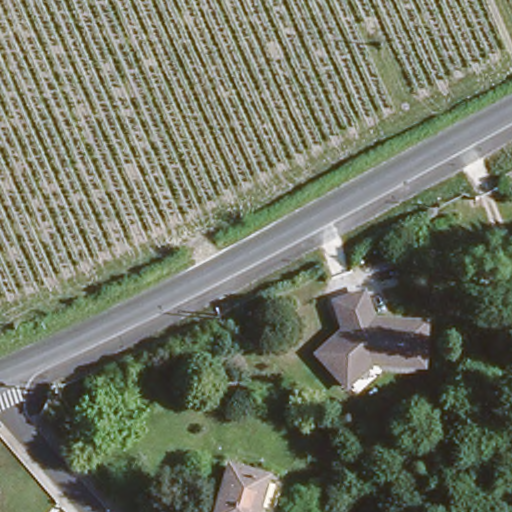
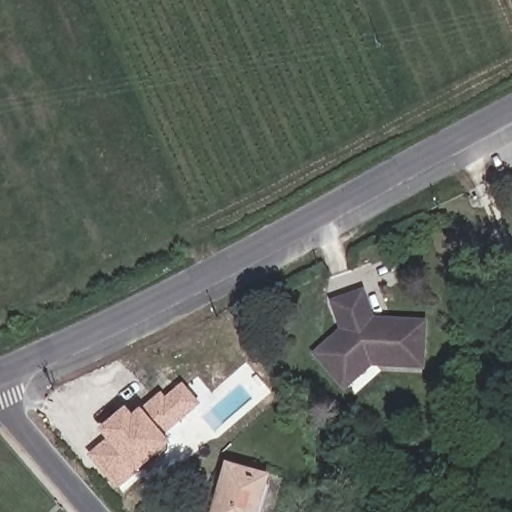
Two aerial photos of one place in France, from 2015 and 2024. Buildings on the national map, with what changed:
unchanged [(344,327),(337,310),(367,301),(372,320),(425,330),(421,360),(368,351),(334,378),(312,354),(344,327)]
new [(100,431),(128,408),(134,415),(162,393),(165,396),(184,381),(203,405),(166,436),(173,444),(119,490),(89,456),(108,439),(100,431)]
unchanged [(257,512),(212,512),(228,465),(269,478),(257,512)]

